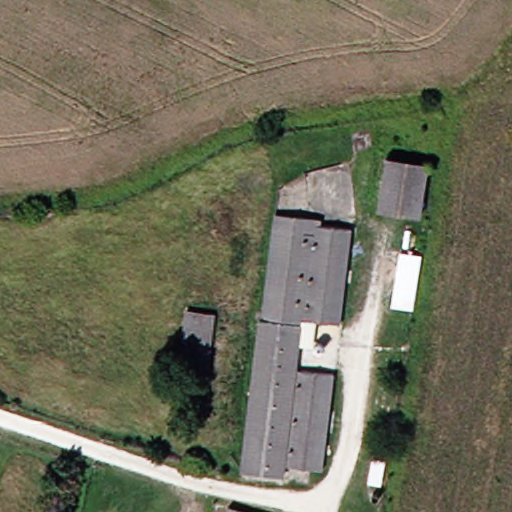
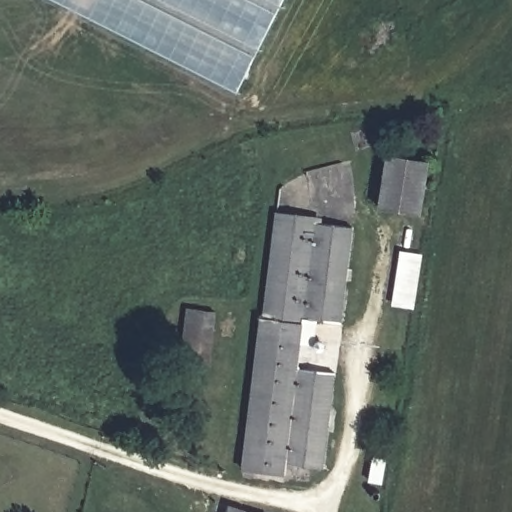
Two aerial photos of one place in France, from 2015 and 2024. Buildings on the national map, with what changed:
new [(52,0),(283,0),(236,93),(52,0)]
unchanged [(421,164),(413,216),(370,210),(377,158),(421,164)]
unchanged [(308,217),(307,225),(345,229),(333,324),(297,319),(292,369),(330,374),(317,468),(279,464),(278,476),(232,471),(266,212),(308,217)]
unchanged [(400,311),(386,309),(393,258),(407,260),(400,311)]
unchanged [(207,312),(200,366),(180,364),(187,309),(207,312)]
unchanged [(386,460),(384,483),(372,481),(375,459),(386,460)]
unchanged [(217,512),(218,509),(228,512),(217,512)]

